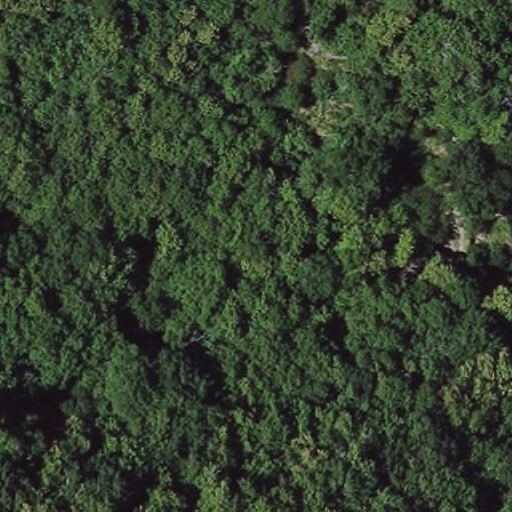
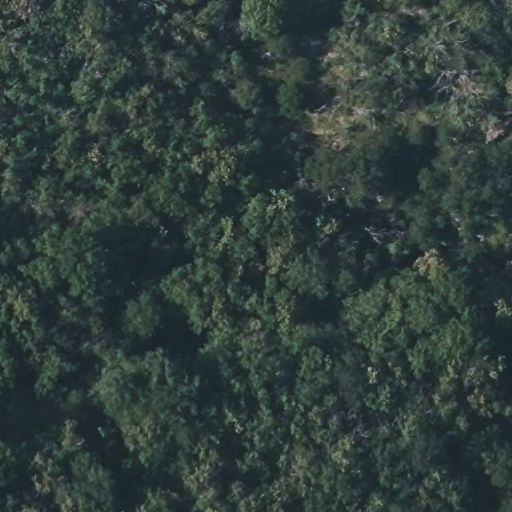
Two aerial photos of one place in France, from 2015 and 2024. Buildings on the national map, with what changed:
unchanged [(159,192),(165,209),(146,215),(141,200),(159,192)]

